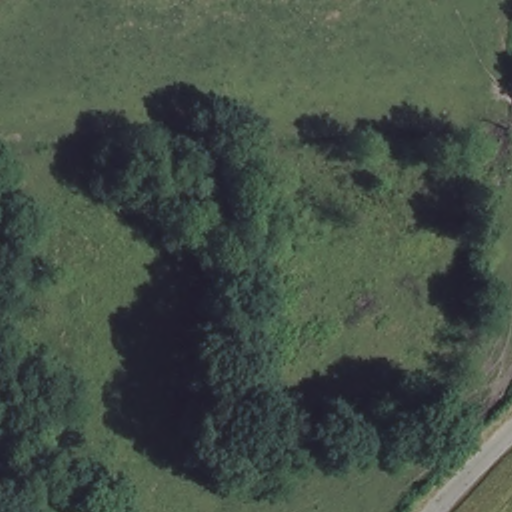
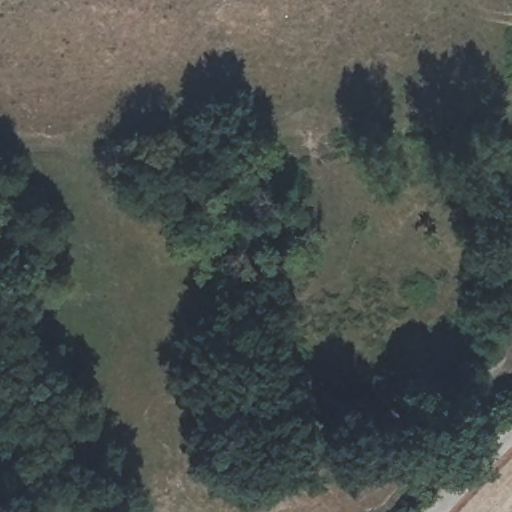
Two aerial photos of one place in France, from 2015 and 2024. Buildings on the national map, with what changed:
[]

